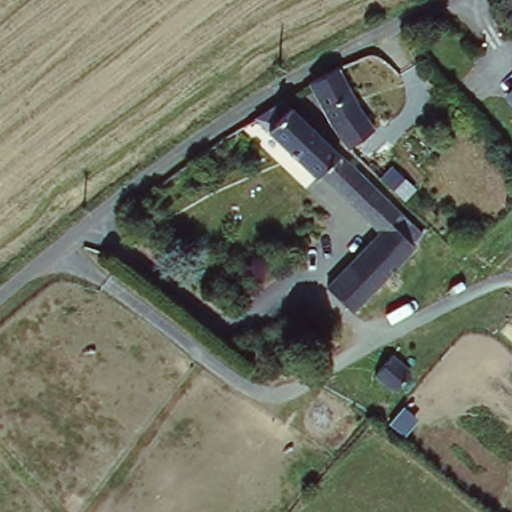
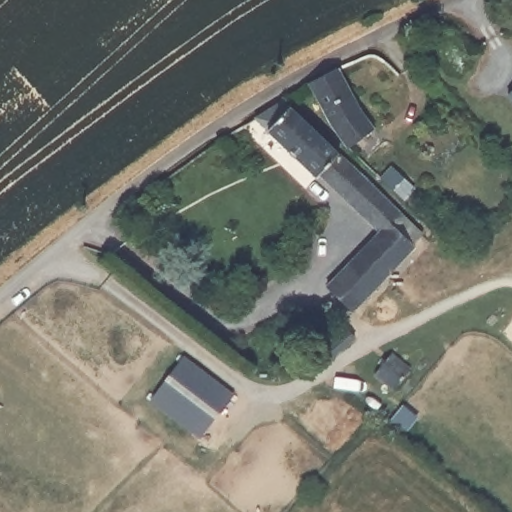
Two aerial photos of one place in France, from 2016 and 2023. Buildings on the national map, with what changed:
unchanged [(317,74),(342,62),(380,128),(353,142),(339,123),(311,78),(317,74)]
unchanged [(280,97),(287,93),(426,231),(387,272),(360,247),(381,225),(325,170),(321,174),(257,110),(280,97)]
unchanged [(510,97),(512,95),(512,99),(510,97)]
unchanged [(387,272),(355,305),(329,279),(360,247),(387,272)]
new [(412,370),(395,391),(376,376),(393,354),(412,370)]
new [(152,403),(185,357),(234,394),(201,439),(152,403)]
demolished [(411,359),(435,383),(431,388),(437,397),(426,410),(416,400),(407,410),(384,386),(411,359)]

